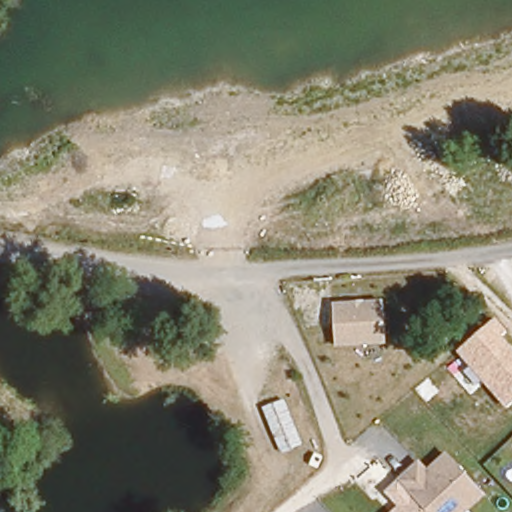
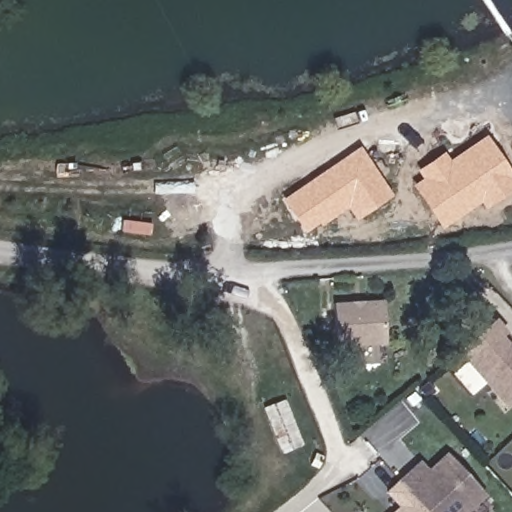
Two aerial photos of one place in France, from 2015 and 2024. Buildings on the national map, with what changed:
new [(481,202),(442,227),(412,185),(422,177),(416,171),(442,151),(449,159),(486,134),(512,173),(512,191),(486,209),(481,202)]
new [(356,220),(347,207),(320,226),(317,223),(303,232),(281,199),(358,146),(392,195),(356,220)]
unchanged [(383,300),(387,344),(336,347),(333,302),(383,300)]
unchanged [(482,380),(477,385),(465,371),(471,364),(458,350),(496,317),(508,332),(502,338),(512,349),(512,402),(507,407),(482,380)]
unchanged [(261,407),(282,398),(299,445),(276,456),(261,407)]
unchanged [(430,468),(447,451),(487,495),(469,512),(428,512),(398,480),(421,459),(430,468)]
unchanged [(385,492),(398,480),(428,512),(390,512),(397,506),(385,492)]

